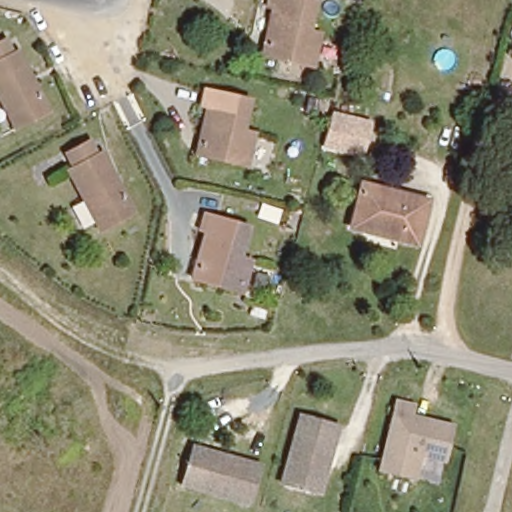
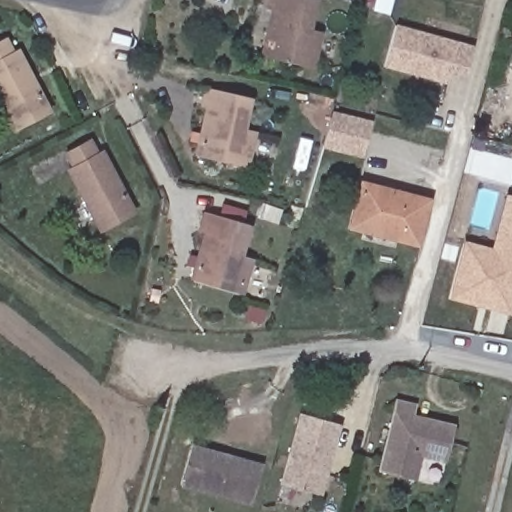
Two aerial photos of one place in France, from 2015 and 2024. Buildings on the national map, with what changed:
unchanged [(320,31),(314,65),(266,54),(275,5),(269,5),(270,0),(315,0),(310,29),(320,31)]
new [(465,76),(451,71),(447,84),(383,66),(395,24),(474,46),(465,76)]
unchanged [(13,53),(18,51),(50,113),(14,130),(0,102),(0,42),(6,39),(13,53)]
unchanged [(251,99),(245,130),(255,132),(249,164),(201,154),(210,105),(205,105),(209,89),(251,99)]
unchanged [(333,116),(377,130),(368,159),(324,145),(333,116)]
unchanged [(63,150),(88,137),(96,152),(101,150),(131,210),(96,227),(66,167),(70,165),(63,150)]
unchanged [(426,197),(416,241),(348,224),(360,183),(426,197)]
new [(510,315),(447,298),(463,240),(491,247),(506,194),(512,196),(512,308),(510,315)]
unchanged [(203,212),(247,225),(239,255),(250,260),(240,293),(192,280),(205,231),(199,230),(203,212)]
unchanged [(150,320),(147,331),(138,330),(140,317),(150,320)]
unchanged [(447,466),(421,460),(416,483),(378,471),(396,398),(414,404),(412,415),(455,425),(447,466)]
unchanged [(323,500),(284,490),(302,423),(341,433),(323,500)]
unchanged [(263,471),(252,510),(187,491),(198,453),(263,471)]

